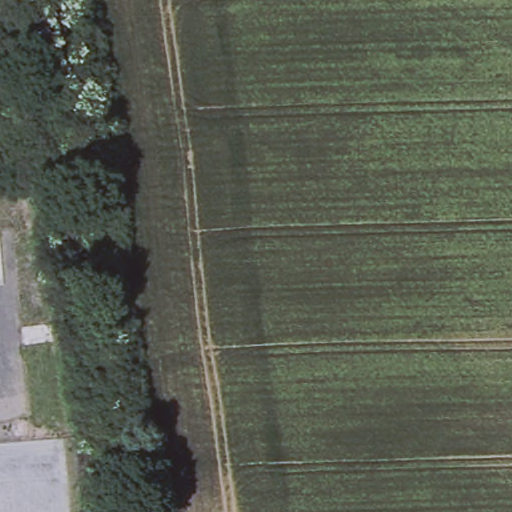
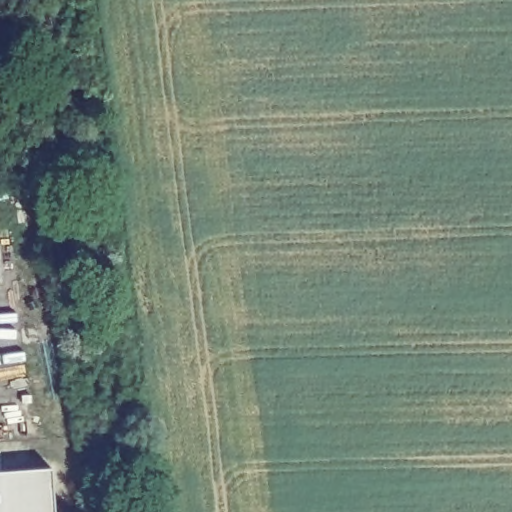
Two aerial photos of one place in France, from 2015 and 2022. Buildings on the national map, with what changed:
new [(51,475),(54,512),(0,512),(0,477),(51,475)]

